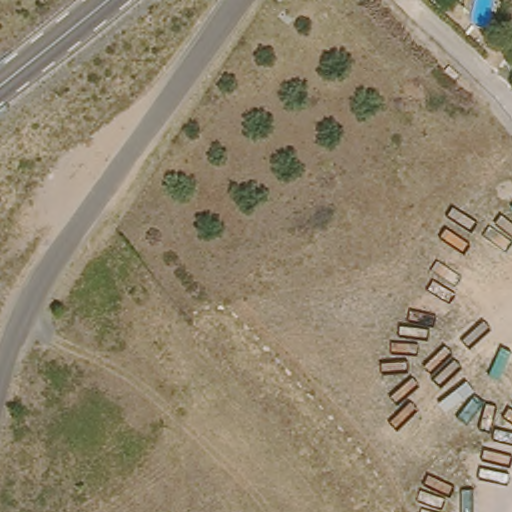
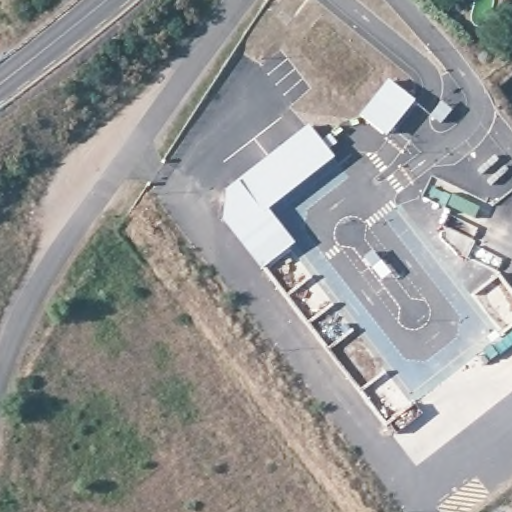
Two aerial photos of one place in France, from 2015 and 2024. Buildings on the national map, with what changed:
new [(417,100),(387,138),(360,117),(388,81),(417,100)]
new [(336,158),(269,209),(296,243),(263,270),(223,222),(227,190),(238,181),(311,124),(336,158)]

